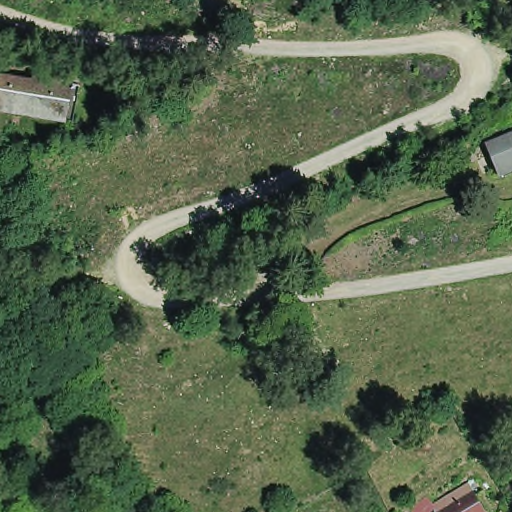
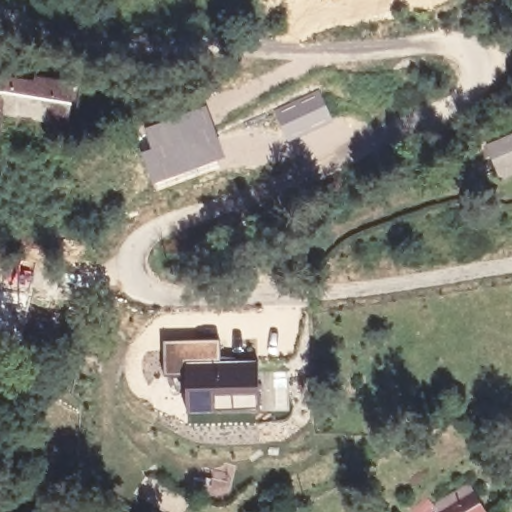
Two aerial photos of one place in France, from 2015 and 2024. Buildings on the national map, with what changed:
unchanged [(0,107),(0,104),(4,79),(36,85),(37,78),(72,84),(67,118),(0,107)]
new [(320,90),(332,118),(287,140),(272,110),(320,90)]
new [(149,146),(142,128),(206,103),(227,157),(152,184),(139,151),(149,146)]
unchanged [(506,169),(495,141),(512,134),(512,166),(506,169)]
new [(19,359),(0,356),(0,286),(32,292),(19,359)]
new [(212,340),(215,366),(253,363),(256,418),(183,417),(185,383),(162,385),(160,339),(212,340)]
unchanged [(478,479),(493,503),(478,512),(449,512),(446,507),(467,493),(464,489),(478,479)]
unchanged [(444,500),(432,509),(425,499),(437,491),(444,500)]

